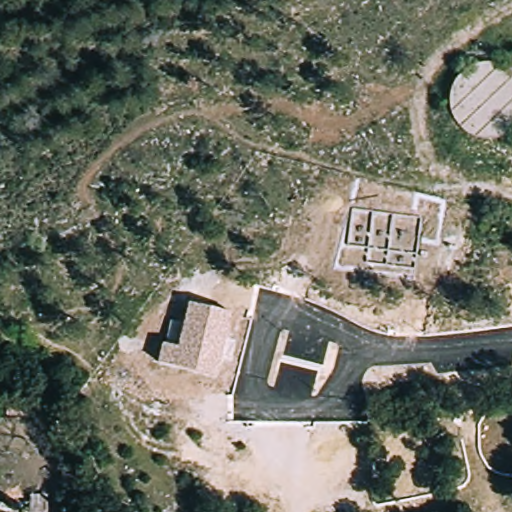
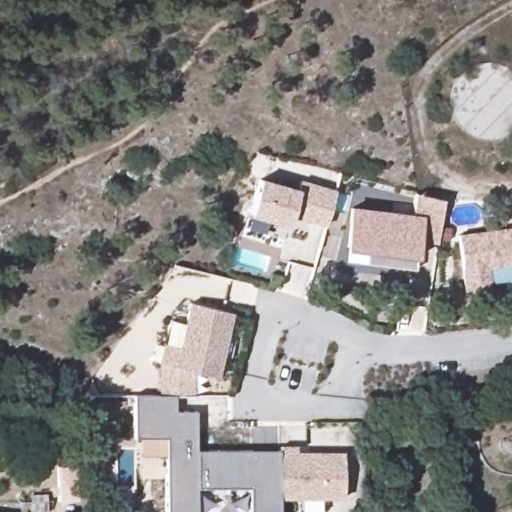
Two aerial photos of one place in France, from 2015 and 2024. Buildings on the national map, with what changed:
new [(326,226),(292,217),(289,226),(247,216),(258,179),(298,190),(300,180),(337,191),(326,226)]
new [(436,244),(419,242),(417,259),(413,269),(413,279),(334,270),(346,248),(349,207),(413,214),(416,195),(444,200),(436,244)]
new [(490,291),(462,295),(456,234),(512,228),(512,280),(489,283),(490,291)]
unchanged [(191,303),(231,313),(218,377),(160,363),(164,344),(180,348),(191,303)]
new [(279,500),(278,512),(248,512),(249,487),(196,487),(195,512),(166,512),(166,437),(134,437),(134,396),(160,396),(162,364),(194,371),(195,396),(175,396),(174,411),(196,412),(197,451),(280,452),(280,446),(297,446),(298,452),(343,452),(343,498),(279,500)]

